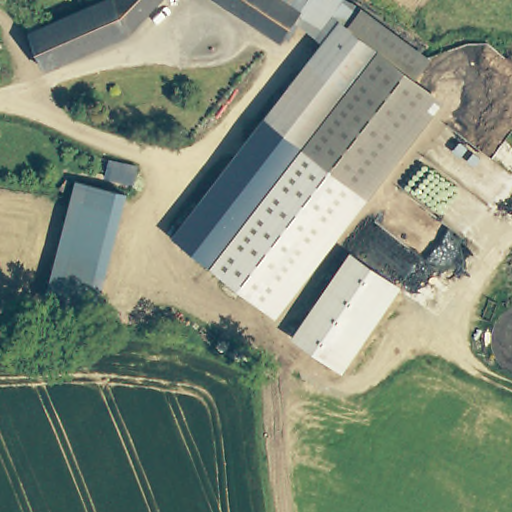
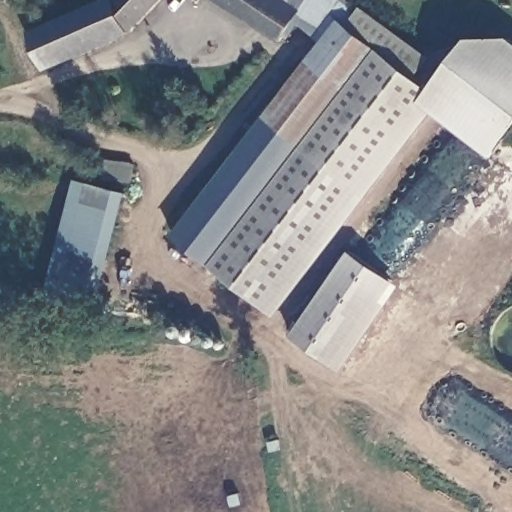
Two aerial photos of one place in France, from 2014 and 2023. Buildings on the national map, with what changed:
unchanged [(99,0),(159,0),(132,28),(47,63),(32,24),(99,0)]
unchanged [(299,3),(288,22),(279,36),(224,0),(295,0),(299,3)]
unchanged [(376,46),(340,21),(321,44),(288,22),(299,3),(303,0),(354,0),(436,50),(417,79),(376,46)]
unchanged [(307,141),(265,116),(321,44),(340,21),(376,46),(417,79),(444,100),(372,190),(307,141)]
new [(444,100),(430,88),(467,37),(510,36),(512,38),(512,131),(492,157),(434,113),(439,106),(444,100)]
unchanged [(307,141),(372,190),(275,314),(171,236),(265,116),(307,141)]
unchanged [(125,192),(93,316),(44,303),(74,179),(125,192)]
unchanged [(399,284),(342,370),(291,337),(349,250),(399,284)]

